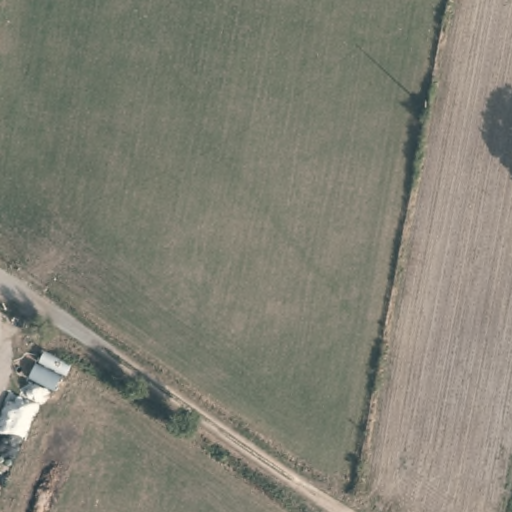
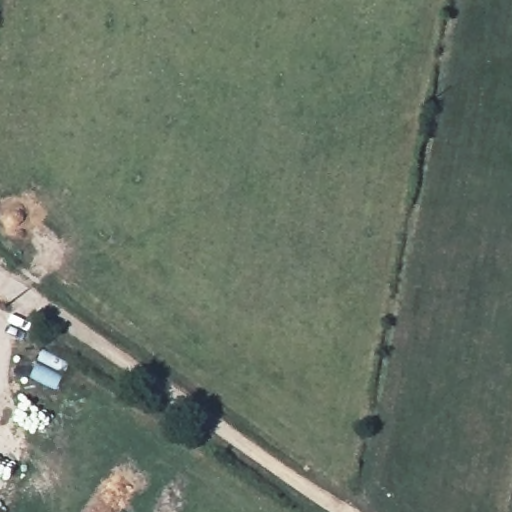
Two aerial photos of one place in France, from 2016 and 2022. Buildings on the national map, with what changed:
[]

